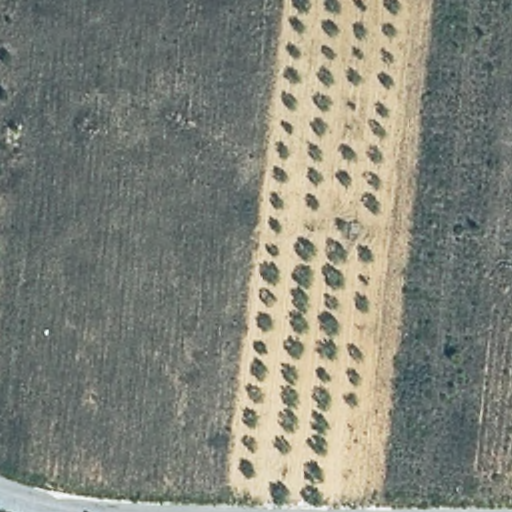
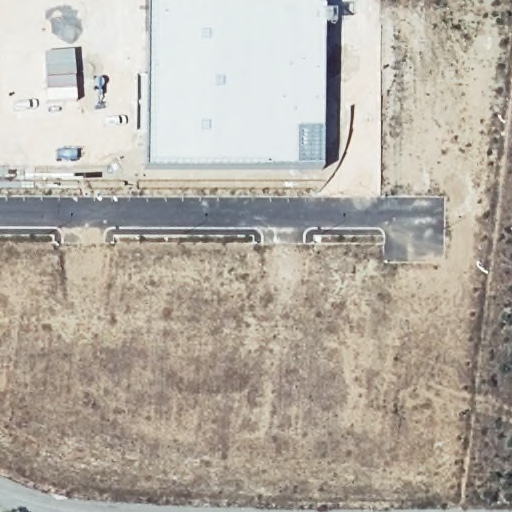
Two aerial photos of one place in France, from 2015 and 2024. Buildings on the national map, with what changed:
new [(136,76),(146,76),(146,0),(310,0),(325,6),(324,12),(334,12),(333,27),(324,27),(324,167),(145,167),(145,134),(136,134),(136,76)]

